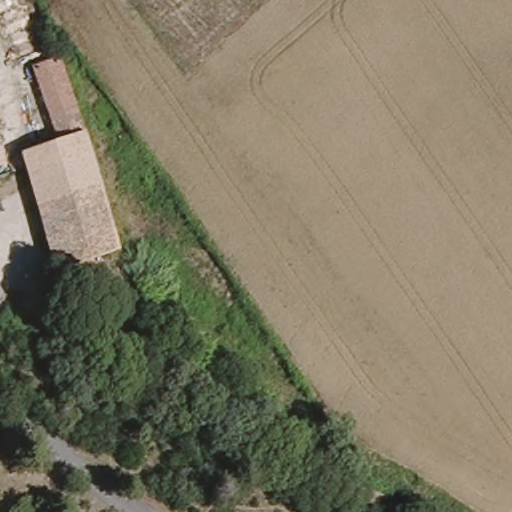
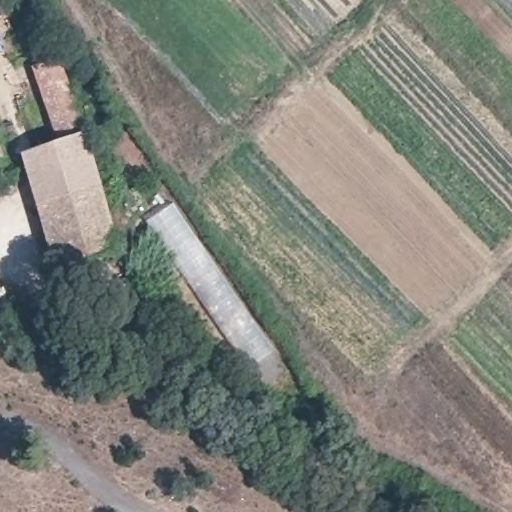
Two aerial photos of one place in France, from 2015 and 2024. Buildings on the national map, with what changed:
unchanged [(30,175),(23,153),(55,141),(31,65),(58,57),(91,156),(30,175)]
unchanged [(127,275),(67,293),(30,175),(68,163),(91,156),(127,275)]
new [(259,386),(145,222),(173,202),(287,368),(259,386)]

